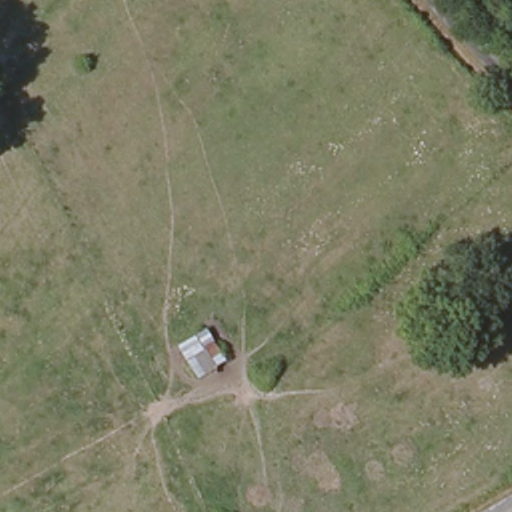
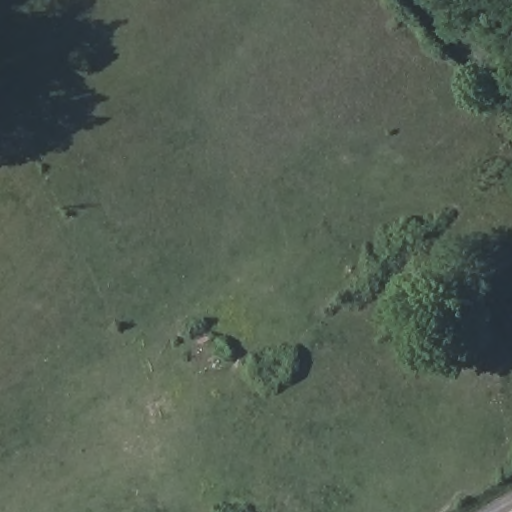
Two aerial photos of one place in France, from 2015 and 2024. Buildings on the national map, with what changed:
unchanged [(204,324),(223,358),(192,375),(174,341),(204,324)]

